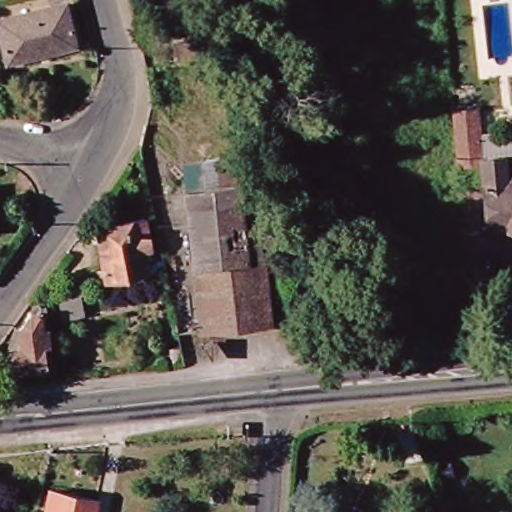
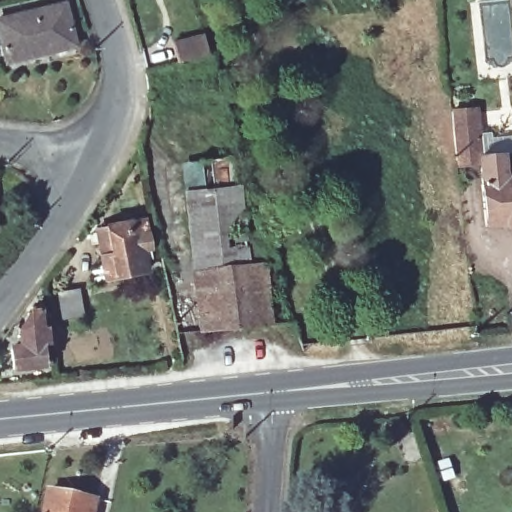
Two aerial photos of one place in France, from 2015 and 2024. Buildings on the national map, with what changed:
unchanged [(7,61),(0,36),(0,16),(62,1),(74,42),(7,61)]
unchanged [(186,92),(216,89),(223,110),(189,115),(186,92)]
unchanged [(476,156),(452,159),(447,109),(471,106),(475,153),(476,156)]
unchanged [(500,218),(483,220),(476,156),(475,153),(512,149),(512,224),(500,225),(500,218)]
unchanged [(240,245),(257,242),(269,327),(199,337),(182,200),(197,197),(194,170),(224,165),(229,197),(233,197),(240,245)]
unchanged [(147,244),(141,244),(145,275),(100,278),(96,248),(93,225),(106,224),(146,220),(147,244)]
unchanged [(76,302),(79,330),(59,332),(57,303),(76,302)]
unchanged [(58,375),(12,381),(10,359),(22,357),(20,332),(26,323),(50,320),(58,375)]
unchanged [(41,512),(46,490),(89,500),(87,512),(41,512)]

